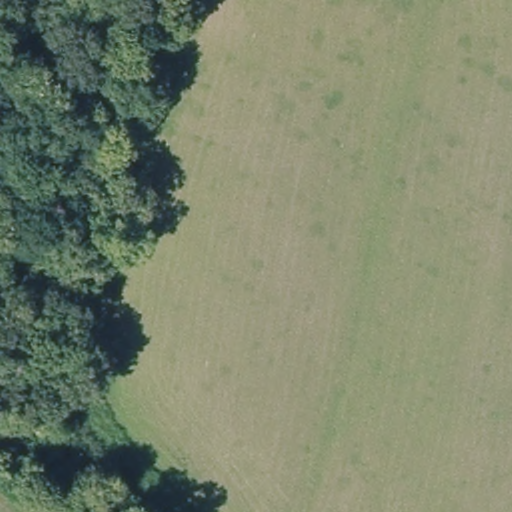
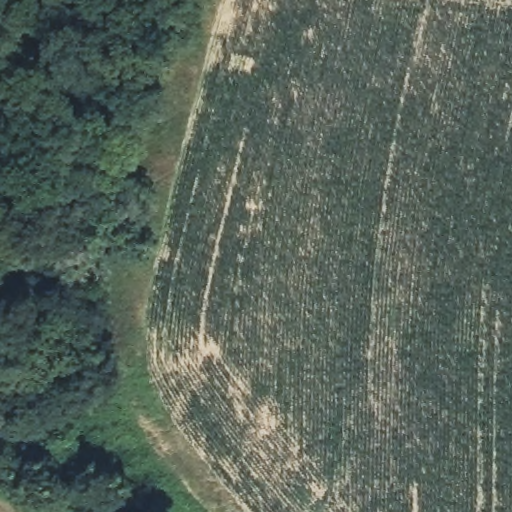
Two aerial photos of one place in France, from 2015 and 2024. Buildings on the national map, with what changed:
[]

